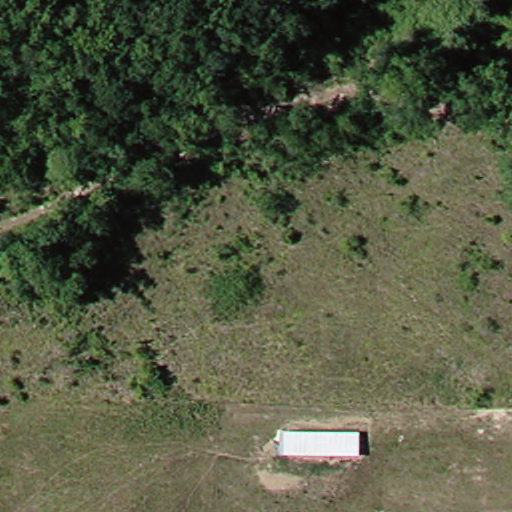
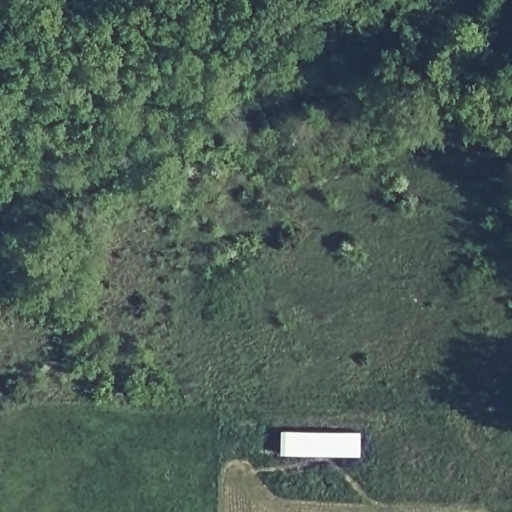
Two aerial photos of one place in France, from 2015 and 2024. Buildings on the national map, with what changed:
unchanged [(280,435),(358,436),(357,461),(278,460),(280,435)]

